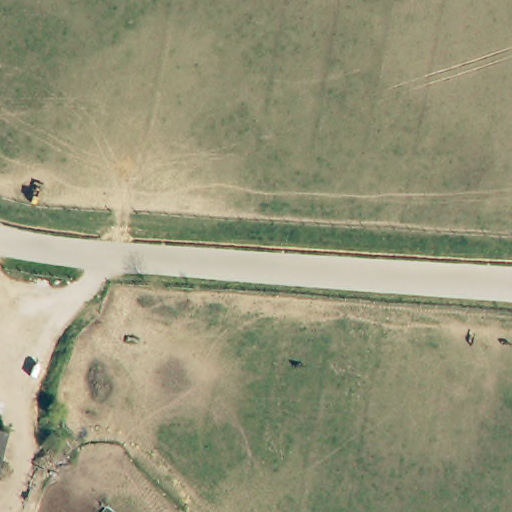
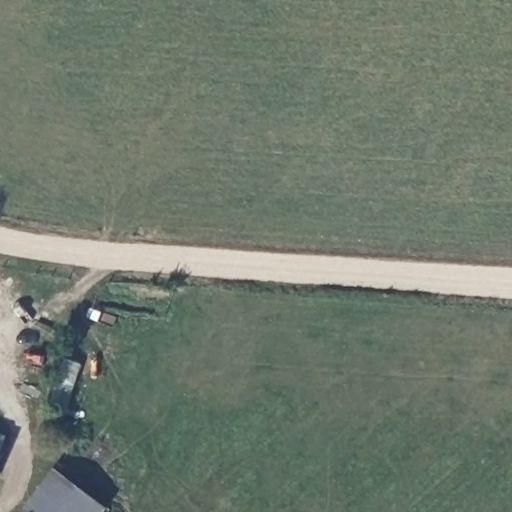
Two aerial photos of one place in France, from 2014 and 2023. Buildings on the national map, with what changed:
unchanged [(10,428),(0,471),(0,425),(10,428)]
new [(107,512),(26,512),(25,511),(57,468),(110,509),(107,512)]

